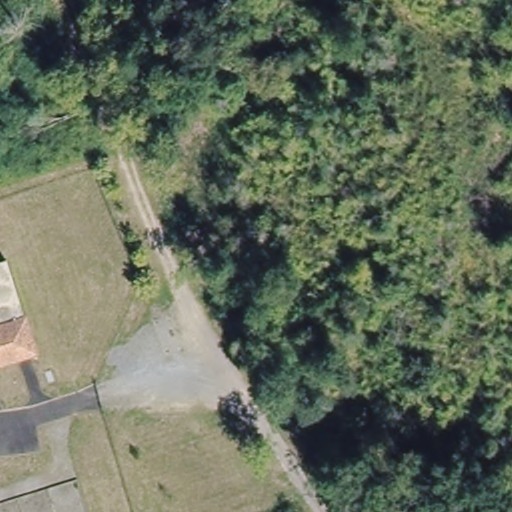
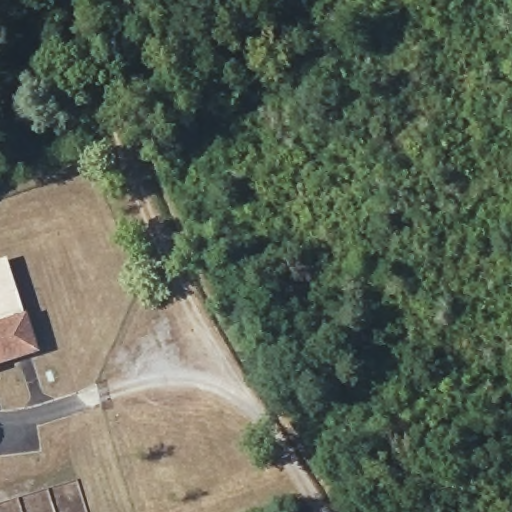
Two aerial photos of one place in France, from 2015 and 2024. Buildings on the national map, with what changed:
unchanged [(0,333),(0,269),(8,266),(25,325),(0,333)]
unchanged [(36,359),(0,370),(0,333),(25,325),(36,359)]

